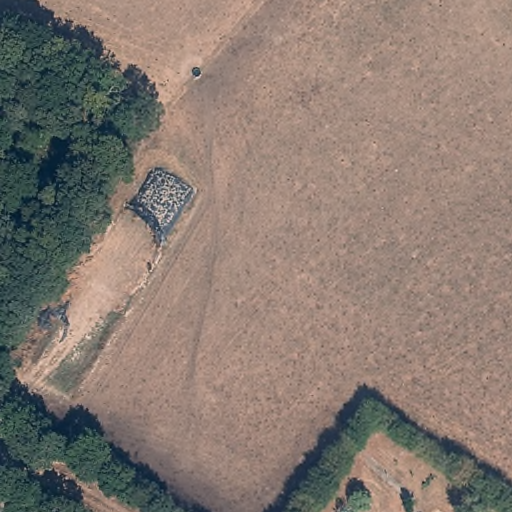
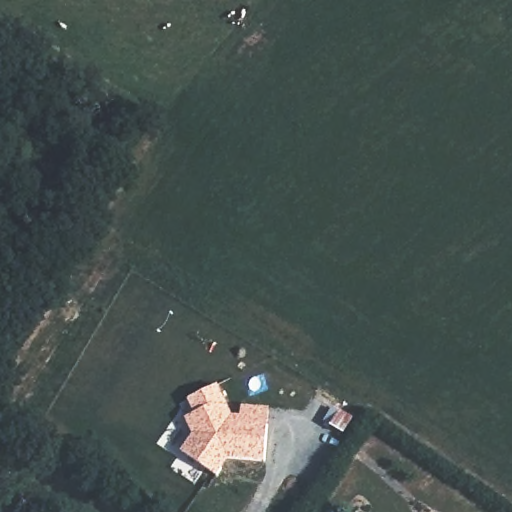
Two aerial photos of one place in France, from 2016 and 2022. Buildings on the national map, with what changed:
new [(218,383),(232,413),(241,415),(242,404),(270,406),(265,462),(230,458),(217,476),(181,450),(193,433),(185,417),(194,412),(188,398),(218,383)]

